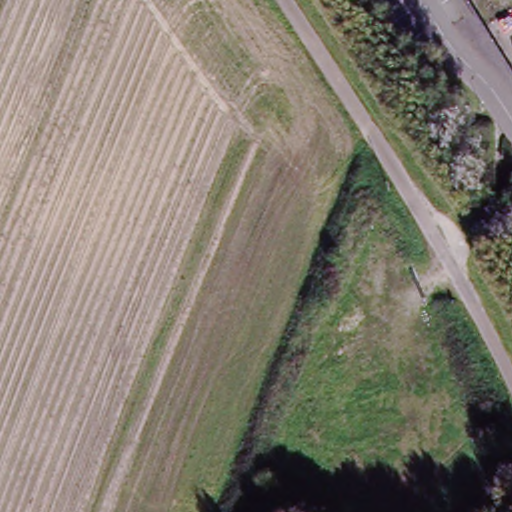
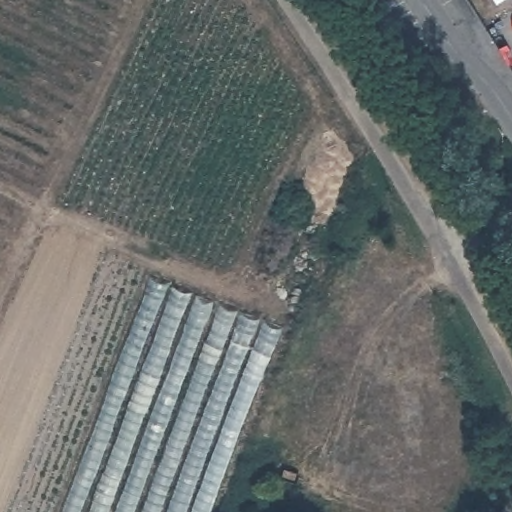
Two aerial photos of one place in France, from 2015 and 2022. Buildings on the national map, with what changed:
new [(214,512),(65,512),(151,277),(280,328),(214,512)]

